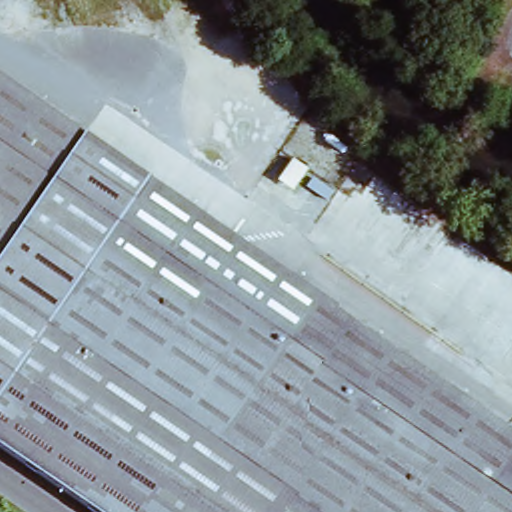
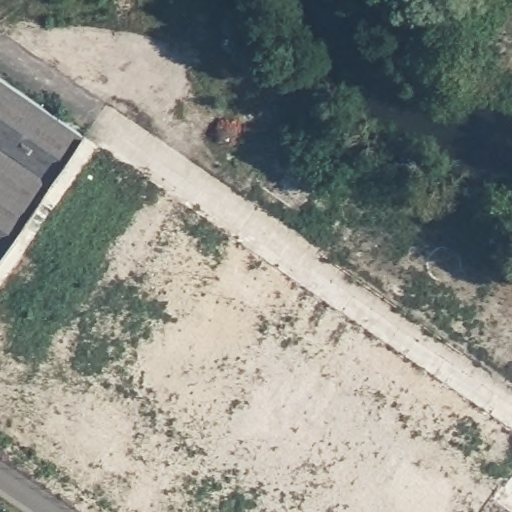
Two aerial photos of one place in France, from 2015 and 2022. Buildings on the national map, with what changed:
demolished [(119,148),(0,315),(0,67),(98,134),(119,148)]
unchanged [(277,112),(309,136),(299,150),(269,125),(277,112)]
demolished [(0,315),(119,148),(155,174),(125,217),(292,330),(222,435),(335,512),(110,512),(0,435),(0,315)]
unchanged [(300,211),(264,185),(289,150),(325,177),(300,211)]
demolished [(335,512),(222,435),(292,330),(512,480),(512,512),(335,512)]

